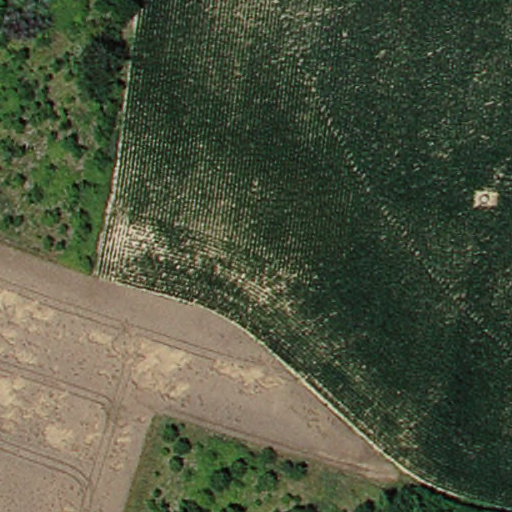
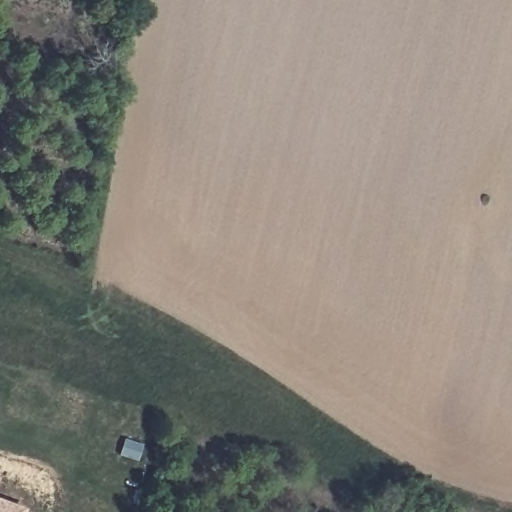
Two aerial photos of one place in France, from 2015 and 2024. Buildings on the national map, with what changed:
new [(0,512),(0,498),(22,506),(21,512),(0,512)]

